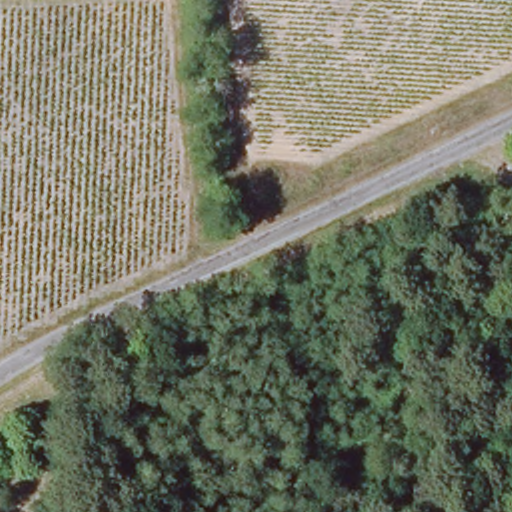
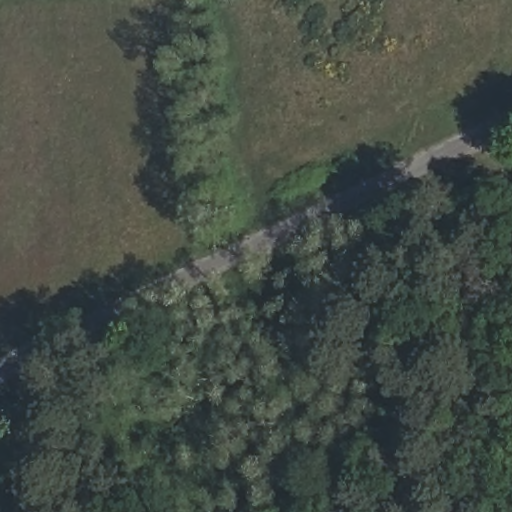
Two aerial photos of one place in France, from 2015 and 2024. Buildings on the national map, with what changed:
[]

